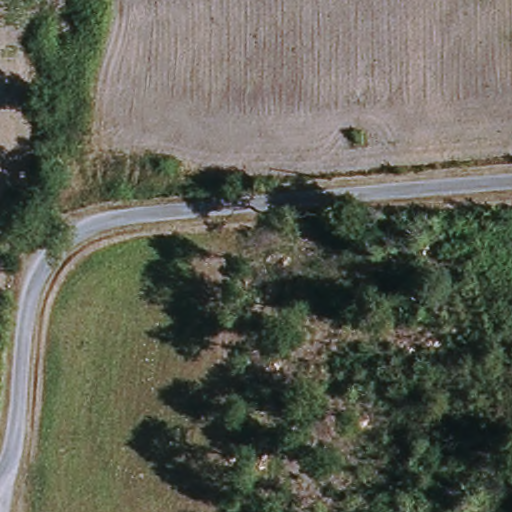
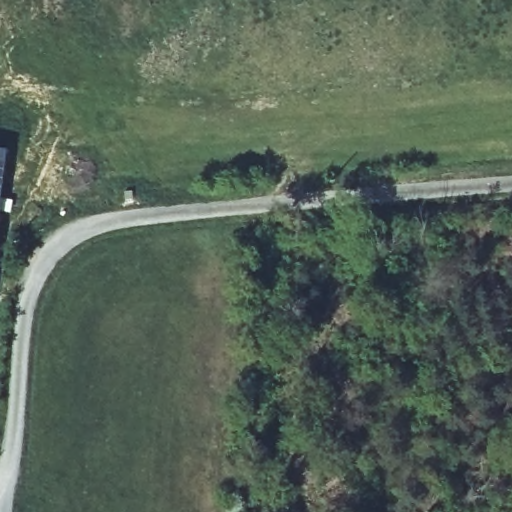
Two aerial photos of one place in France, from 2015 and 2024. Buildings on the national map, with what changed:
new [(4,148),(0,187),(0,148),(4,148)]

